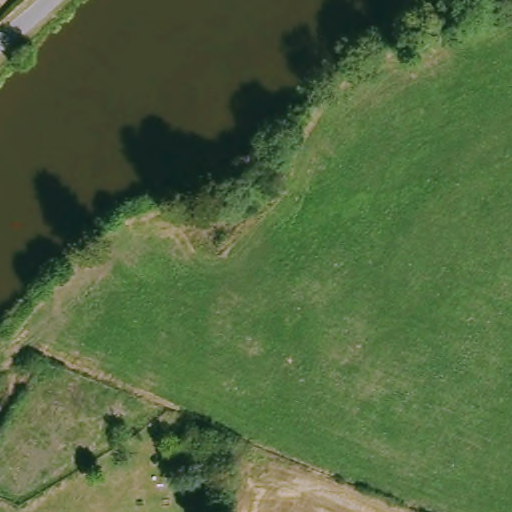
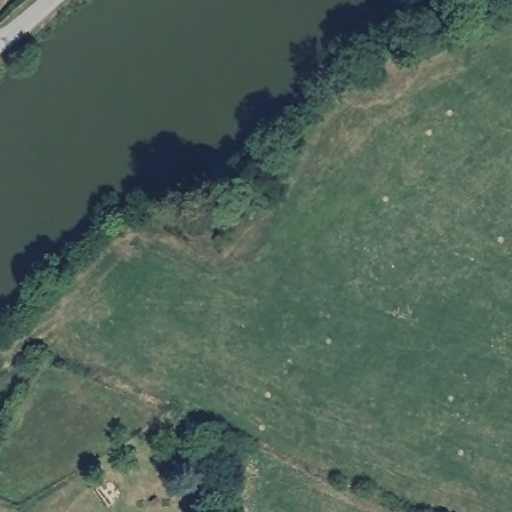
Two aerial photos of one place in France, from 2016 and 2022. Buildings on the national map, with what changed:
[]

